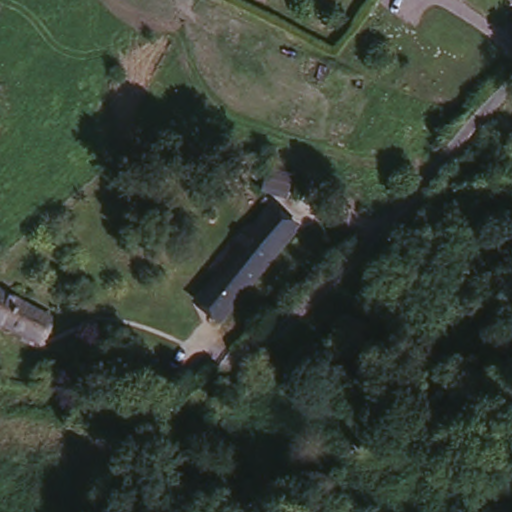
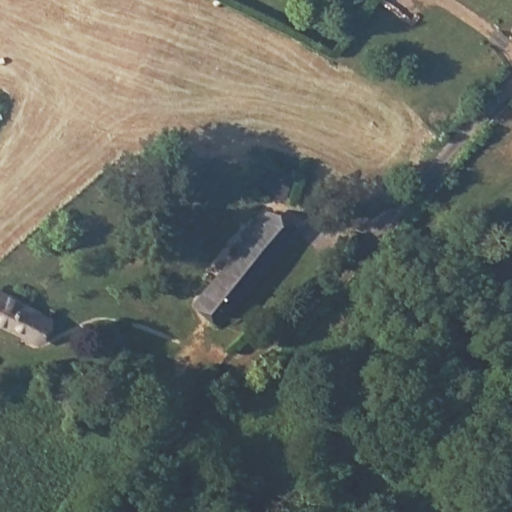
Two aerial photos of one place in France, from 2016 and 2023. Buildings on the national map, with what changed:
unchanged [(252,215),(263,221),(271,207),(294,221),(283,239),(254,286),(251,292),(218,272),(241,233),(252,215)]
unchanged [(251,292),(234,319),(201,300),(218,272),(251,292)]
unchanged [(39,339),(0,321),(0,281),(55,308),(39,339)]

